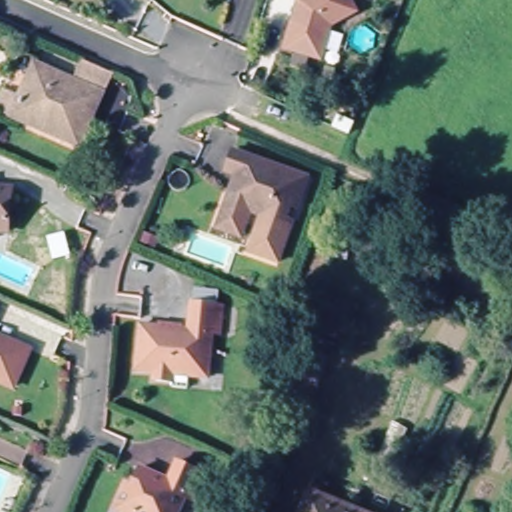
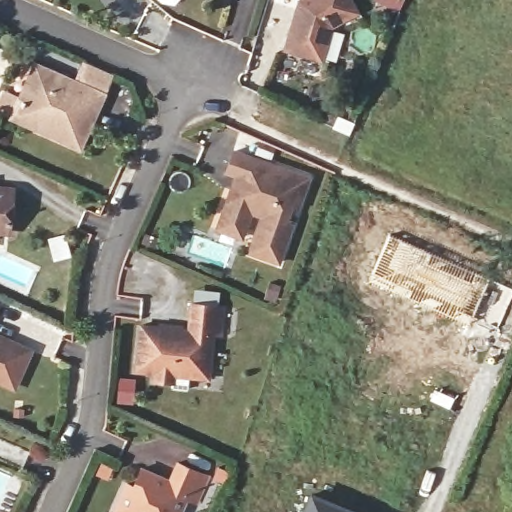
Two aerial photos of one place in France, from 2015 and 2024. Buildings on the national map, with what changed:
unchanged [(331,25),(322,58),(285,48),(299,0),(351,0),(357,10),(331,25)]
unchanged [(4,92),(23,101),(39,64),(78,81),(85,63),(114,76),(107,93),(83,148),(22,122),(0,113),(0,103),(4,92)]
unchanged [(252,211),(243,237),(218,228),(222,217),(232,189),(237,175),(228,171),(235,150),(311,176),(299,209),(293,207),(289,218),(295,220),(281,262),(251,251),(258,232),(263,215),(252,211)]
unchanged [(16,193),(12,233),(0,232),(0,192),(16,193)]
unchanged [(155,381),(156,373),(138,371),(142,328),(161,330),(161,326),(183,328),(183,332),(189,332),(192,307),(193,307),(194,293),(218,295),(217,308),(223,309),(220,337),(212,337),(208,380),(187,377),(186,390),(173,388),(174,383),(155,381)]
unchanged [(1,305),(0,308),(0,305),(1,305)]
unchanged [(36,347),(18,385),(0,378),(0,332),(36,347)]
unchanged [(134,489),(143,469),(170,481),(178,463),(208,476),(196,503),(187,499),(182,512),(116,512),(127,486),(134,489)]
unchanged [(358,512),(305,512),(312,492),(358,512)]

